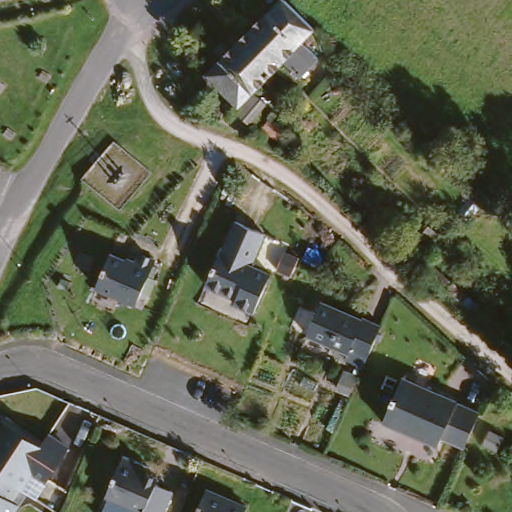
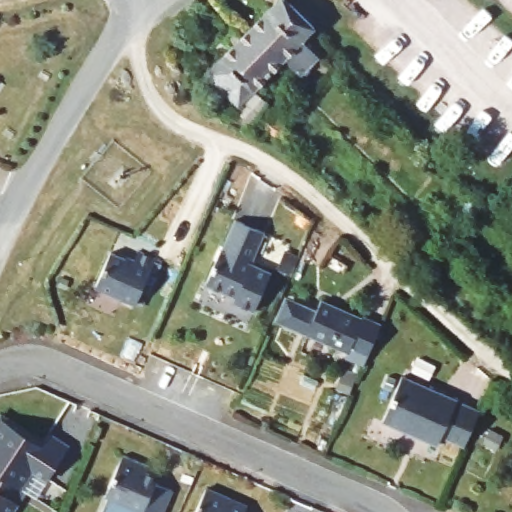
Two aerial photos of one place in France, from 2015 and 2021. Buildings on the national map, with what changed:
unchanged [(319,20),(284,51),(257,20),(278,0),(312,0),(324,14),(319,20)]
unchanged [(255,77),(267,91),(249,107),(237,93),(243,88),(216,57),(257,20),(284,51),(255,77)]
unchanged [(281,124),(262,115),(266,105),(285,111),(281,124)]
unchanged [(256,229),(243,258),(251,262),(233,300),(214,292),(216,288),(198,280),(228,216),(256,229)]
unchanged [(101,285),(115,251),(137,261),(142,250),(160,258),(141,302),(101,285)]
unchanged [(355,365),(337,357),(339,352),(298,334),(312,302),(353,320),(355,314),(374,322),(355,365)]
unchanged [(448,396),(447,398),(471,409),(455,445),(431,434),(428,443),(373,418),(394,371),(448,396)]
unchanged [(37,438),(42,428),(60,439),(41,472),(22,462),(15,475),(25,481),(6,512),(0,512),(0,416),(37,438)]
unchanged [(156,512),(138,512),(100,496),(118,456),(142,467),(140,472),(152,477),(149,484),(165,491),(156,512)]
unchanged [(252,502),(248,512),(199,512),(212,483),(252,502)]

